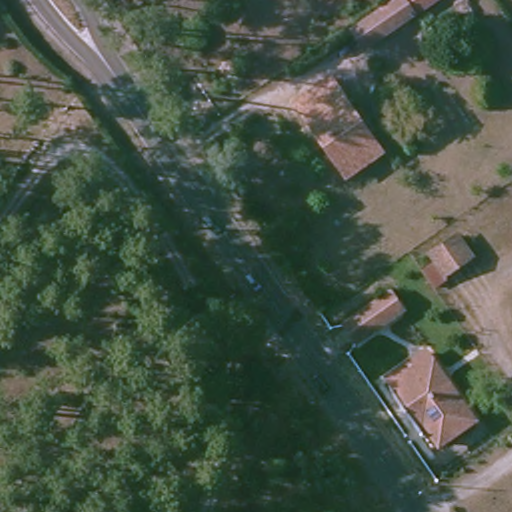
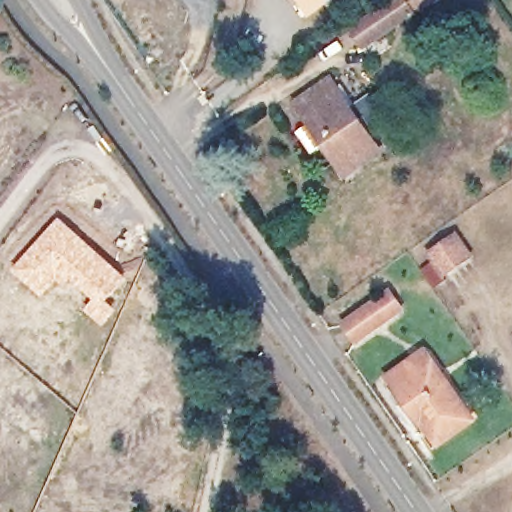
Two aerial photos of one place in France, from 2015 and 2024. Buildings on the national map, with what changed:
new [(331,0),(333,3),(310,18),(297,0),(331,0)]
unchanged [(400,0),(439,0),(433,3),(365,51),(352,33),(400,0)]
unchanged [(346,175),(295,104),(327,81),(377,152),(346,175)]
new [(60,217),(127,278),(108,301),(117,311),(102,327),(84,310),(91,301),(70,281),(64,288),(57,282),(43,298),(12,270),(60,217)]
unchanged [(442,277),(428,256),(455,237),(470,258),(442,277)]
demolished [(458,303),(444,282),(470,264),(485,284),(458,303)]
unchanged [(398,310),(353,342),(341,325),(387,293),(398,310)]
unchanged [(437,436),(427,421),(420,428),(392,388),(435,360),(470,412),(437,436)]

